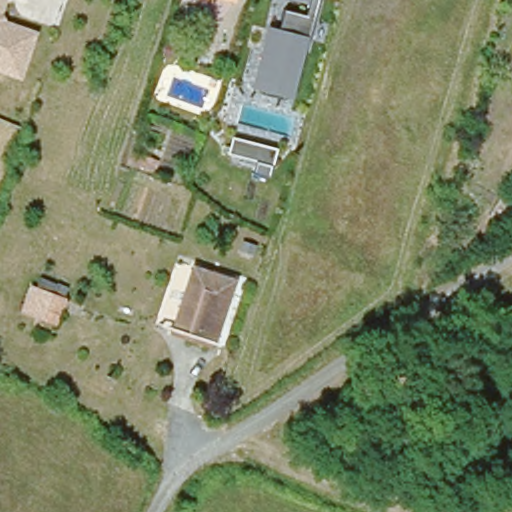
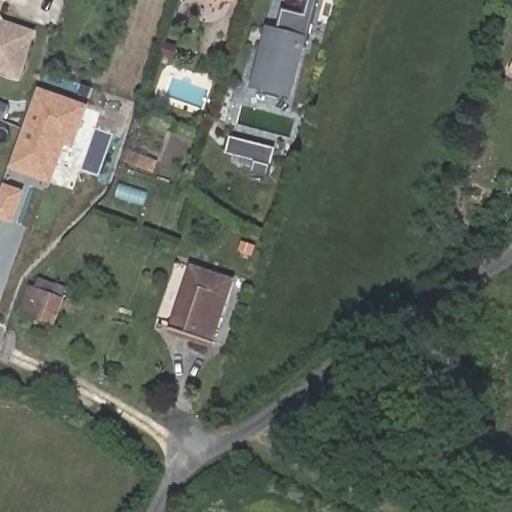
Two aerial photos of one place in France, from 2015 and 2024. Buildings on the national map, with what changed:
unchanged [(302,44),(298,43),(285,92),(280,91),(279,95),(257,90),(259,85),(258,85),(254,84),(270,27),(273,28),(279,5),(283,7),(302,12),(305,0),(314,0),(302,44)]
unchanged [(16,79),(0,74),(0,24),(31,34),(16,79)]
unchanged [(512,64),(512,74),(507,71),(512,64)]
new [(38,89),(90,106),(75,149),(67,146),(52,186),(10,171),(38,89)]
new [(234,152),(237,138),(281,149),(277,164),(273,177),(257,172),(260,160),(234,152)]
unchanged [(192,265),(236,280),(214,343),(170,328),(192,265)]
unchanged [(17,310),(28,283),(45,289),(50,278),(54,268),(72,275),(72,273),(82,276),(79,287),(65,326),(17,310)]

